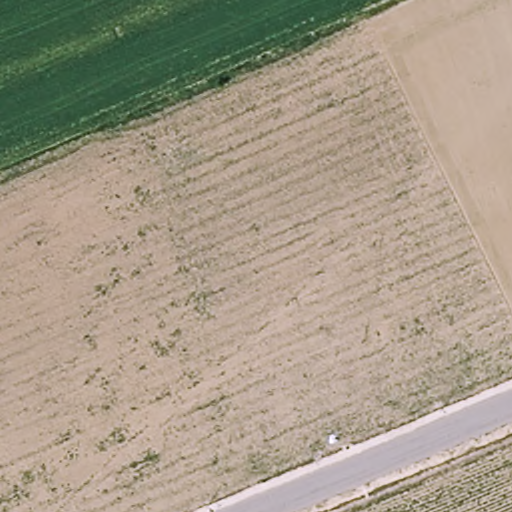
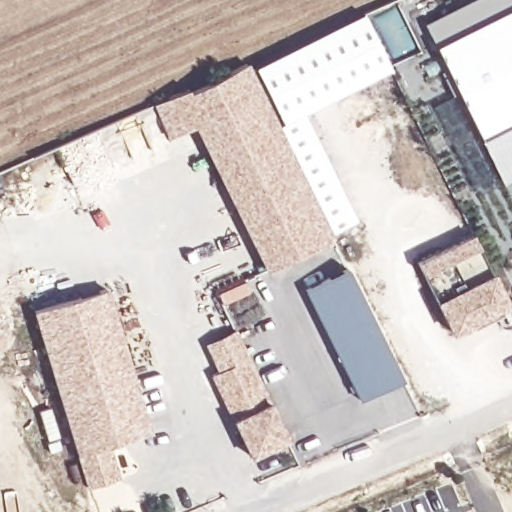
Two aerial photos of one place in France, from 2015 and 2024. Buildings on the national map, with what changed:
new [(482,140),(437,47),(424,23),(470,0),(512,0),(512,180),(504,185),(482,140)]
new [(393,76),(284,128),(257,72),(366,19),(393,76)]
new [(249,72),(334,249),(273,275),(205,131),(169,146),(154,111),(249,72)]
new [(306,118),(358,227),(331,240),(279,131),(306,118)]
new [(477,332),(474,326),(455,335),(422,266),(477,239),(510,309),(512,312),(512,314),(477,332)]
unchanged [(352,272),(405,383),(362,404),(309,293),(352,272)]
new [(111,295),(153,439),(111,451),(121,485),(91,493),(39,316),(111,295)]
new [(196,308),(224,296),(237,324),(274,405),(238,422),(200,340),(209,336),(196,308)]
new [(238,422),(273,406),(289,440),(251,459),(232,420),(236,418),(238,422)]

